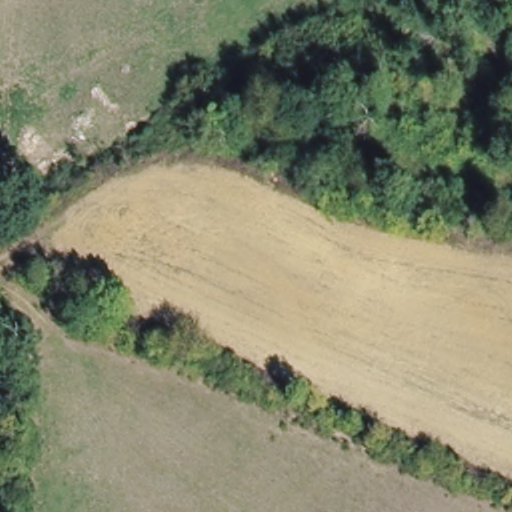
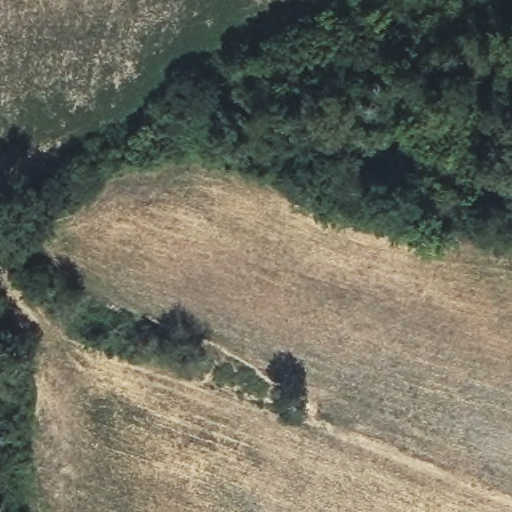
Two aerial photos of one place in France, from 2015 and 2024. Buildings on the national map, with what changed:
[]

